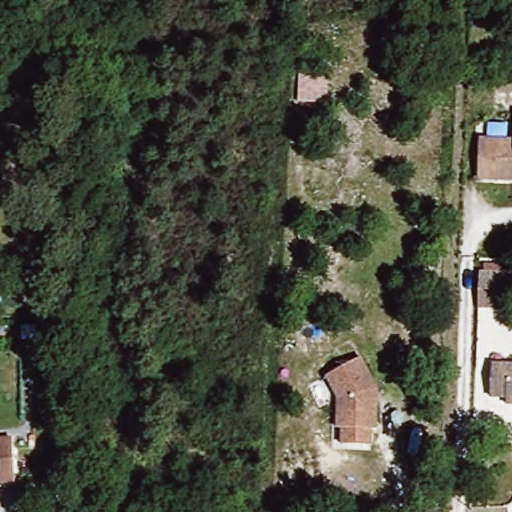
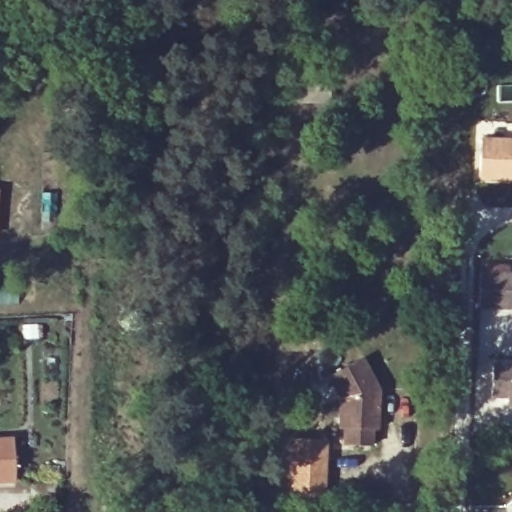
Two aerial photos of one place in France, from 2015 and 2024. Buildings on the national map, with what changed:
unchanged [(510,185),(476,185),(477,149),(501,149),(501,130),(512,130),(512,185),(510,185)]
unchanged [(480,303),(479,270),(512,270),(512,303),(480,303)]
unchanged [(351,432),(345,432),(346,401),(333,380),(365,361),(385,391),(386,402),(384,429),(380,429),(380,446),(350,446),(351,432)]
unchanged [(491,399),(491,365),(512,365),(512,406),(506,406),(506,399),(491,399)]
new [(285,439),(326,439),(325,494),(285,494),(285,439)]
unchanged [(12,484),(0,484),(0,444),(11,444),(12,484)]

